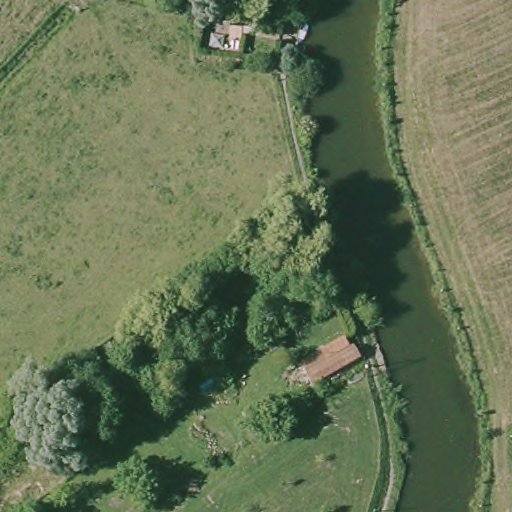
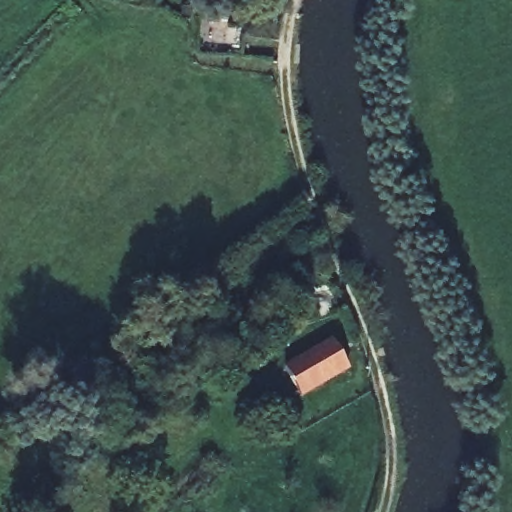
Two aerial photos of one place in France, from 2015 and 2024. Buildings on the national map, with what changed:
unchanged [(337,336),(353,357),(307,391),(289,366),(337,336)]

